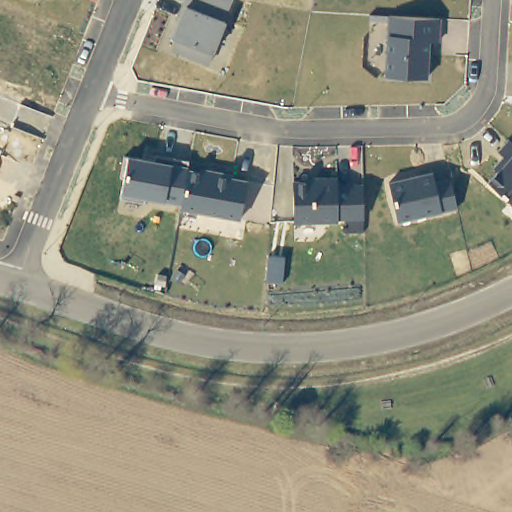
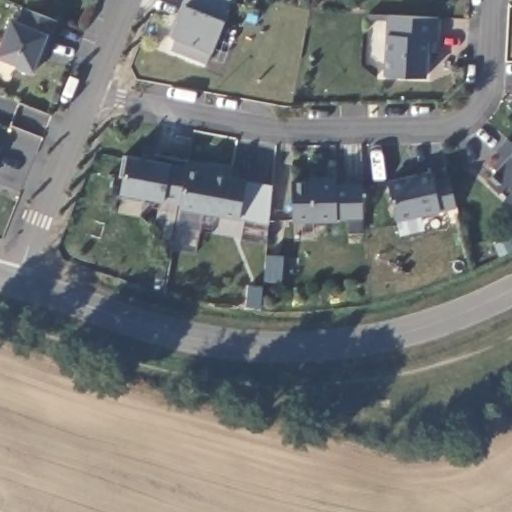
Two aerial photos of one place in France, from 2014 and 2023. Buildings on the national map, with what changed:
unchanged [(181,4),(182,0),(232,0),(223,19),(225,20),(227,21),(214,52),(208,64),(172,50),(177,39),(171,36),(184,5),(181,4)]
new [(42,60),(37,59),(33,71),(0,58),(0,43),(10,18),(20,22),(24,7),(57,22),(42,60)]
unchanged [(441,17),(440,42),(430,42),(427,79),(386,76),(387,33),(388,15),(441,17)]
unchanged [(512,203),(487,180),(496,171),(492,167),(502,154),(497,149),(507,137),(512,141),(512,203)]
unchanged [(152,159),(154,154),(189,161),(187,167),(201,170),(202,167),(248,176),(240,218),(180,208),(181,203),(164,201),(122,193),(129,154),(152,159)]
unchanged [(432,169),(435,181),(451,177),(457,208),(442,212),(397,221),(388,180),(432,169)]
unchanged [(308,181),(308,176),(337,175),(337,184),(363,183),(363,217),(363,229),(348,230),(347,218),(337,219),(338,221),(295,221),(292,181),(308,181)]

